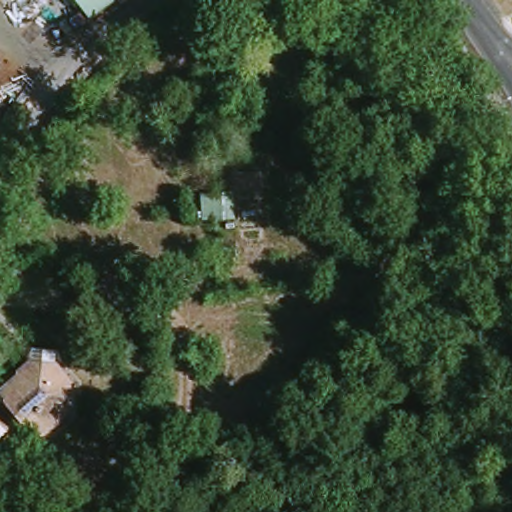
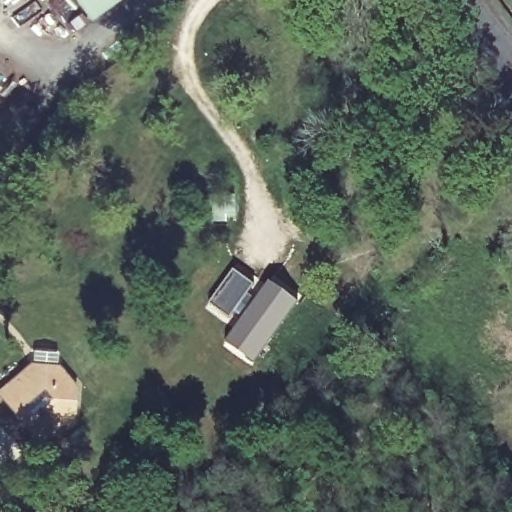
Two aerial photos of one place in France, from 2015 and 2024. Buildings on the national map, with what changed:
unchanged [(80,0),(122,0),(95,20),(80,0)]
new [(232,267),(254,282),(229,318),(207,304),(232,267)]
new [(268,279),(299,301),(253,363),(223,341),(268,279)]
unchanged [(0,395),(0,390),(31,365),(57,366),(74,386),(72,412),(48,433),(39,441),(27,426),(0,395)]

